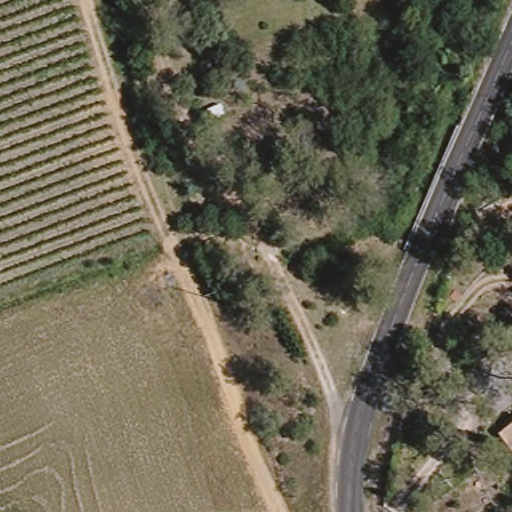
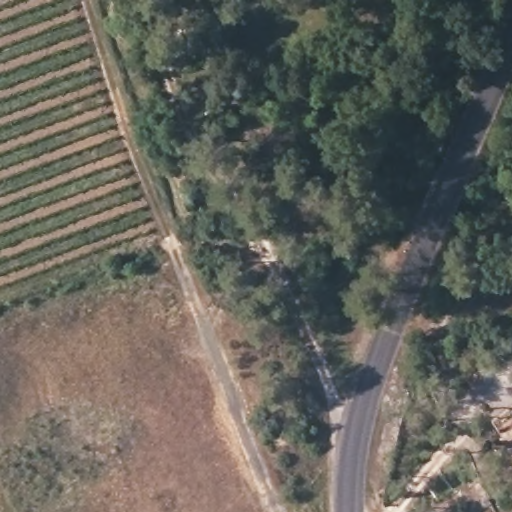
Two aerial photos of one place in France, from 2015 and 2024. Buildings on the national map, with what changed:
unchanged [(502,432),(512,425),(512,446),(502,432)]

